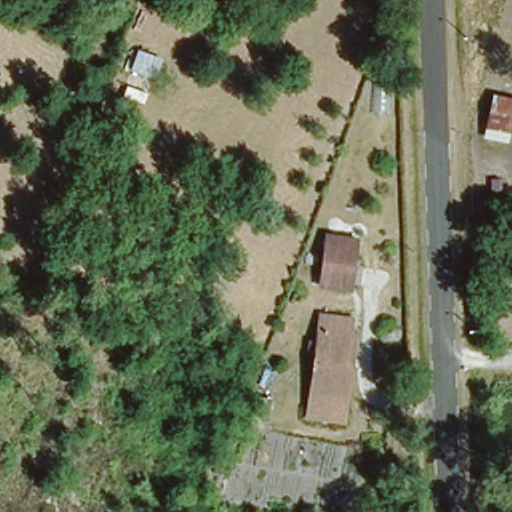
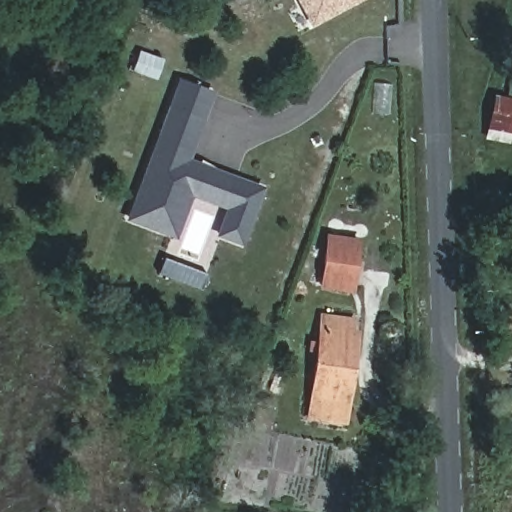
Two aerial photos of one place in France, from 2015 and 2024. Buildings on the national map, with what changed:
new [(295,0),(359,0),(309,26),(295,0)]
unchanged [(156,80),(152,79),(148,90),(129,83),(140,49),(164,57),(156,80)]
new [(124,217),(177,78),(214,92),(189,159),(264,187),(242,247),(214,236),(223,209),(191,198),(175,239),(128,222),(124,217)]
unchanged [(512,102),(512,132),(487,127),(493,99),(512,102)]
unchanged [(357,242),(349,290),(319,285),(327,237),(357,242)]
new [(157,274),(163,258),(204,273),(199,289),(157,274)]
unchanged [(305,416),(317,351),(309,349),(310,340),(318,341),(320,327),(323,314),(356,319),(354,332),(358,333),(352,369),(343,422),(305,416)]
demolished [(273,389),(268,421),(251,418),(257,386),(273,389)]

